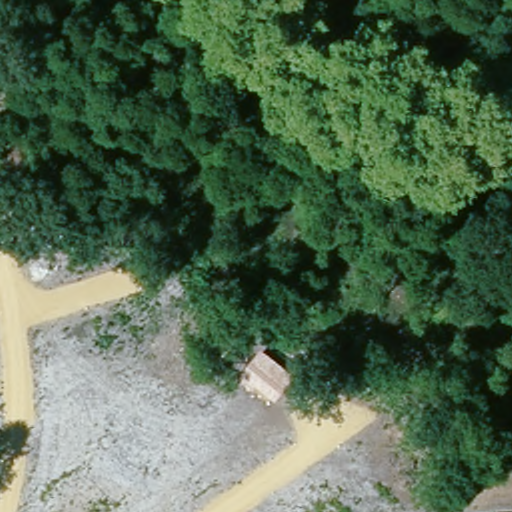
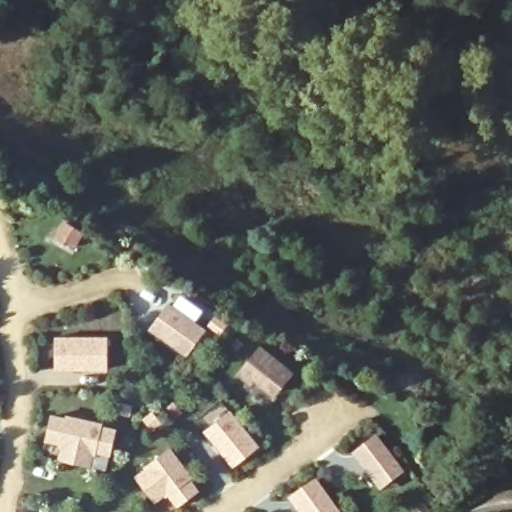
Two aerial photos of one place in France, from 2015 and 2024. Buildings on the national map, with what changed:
new [(170,302),(207,330),(187,357),(149,329),(170,302)]
new [(110,337),(109,370),(55,371),(56,337),(110,337)]
unchanged [(242,372),(263,347),(296,373),(277,400),(242,372)]
new [(205,431),(231,410),(261,446),(234,467),(205,431)]
new [(61,445),(45,442),(52,414),(66,417),(67,414),(104,422),(103,426),(118,428),(111,456),(95,452),(93,467),(59,459),(61,445)]
new [(377,435),(406,472),(382,491),(353,454),(377,435)]
new [(168,494),(156,503),(134,476),(172,447),(201,491),(178,507),(168,494)]
new [(290,498),(317,479),(340,512),(299,512),(290,498)]

